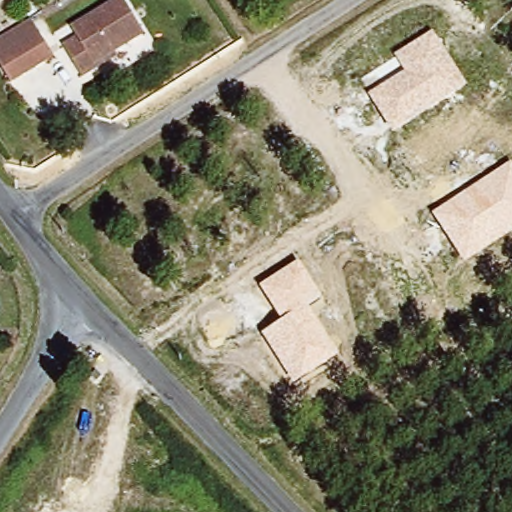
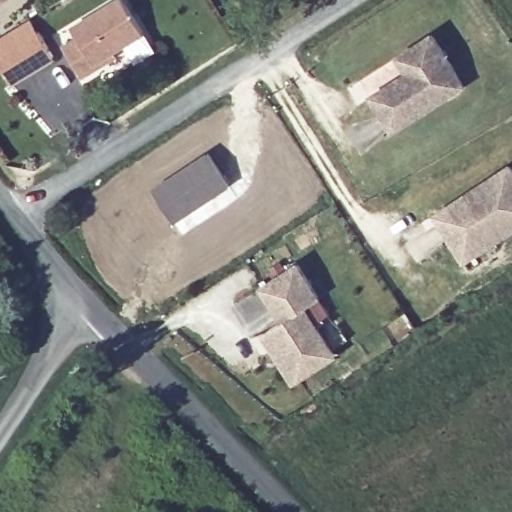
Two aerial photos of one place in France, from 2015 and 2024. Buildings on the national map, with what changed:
unchanged [(78,36),(72,27),(116,0),(124,0),(144,32),(95,63),(97,67),(83,76),(64,45),(78,36)]
unchanged [(12,85),(0,65),(0,37),(30,19),(38,31),(54,57),(12,85)]
unchanged [(467,85),(393,132),(368,94),(405,71),(395,56),(433,32),(467,85)]
new [(208,151),(230,185),(176,220),(154,186),(208,151)]
unchanged [(433,214),(512,161),(512,231),(464,262),(433,214)]
unchanged [(321,296),(308,306),(339,355),(293,384),(262,335),(281,321),(259,286),(298,260),(321,296)]

